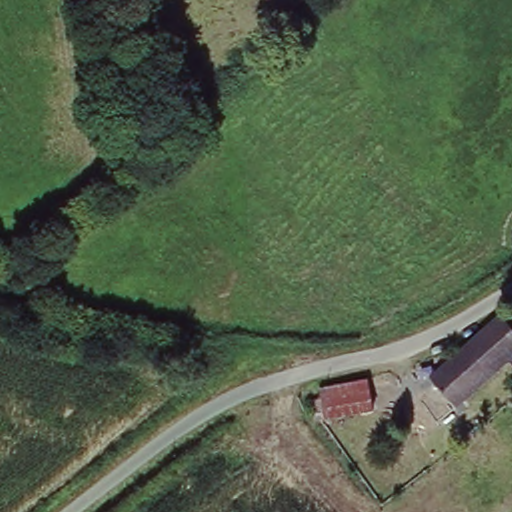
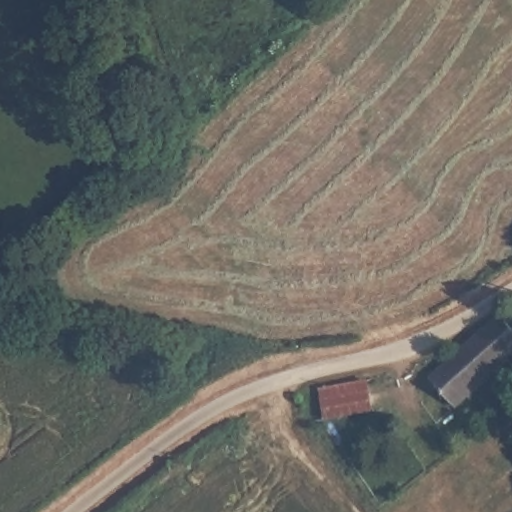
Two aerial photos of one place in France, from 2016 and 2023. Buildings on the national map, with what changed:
unchanged [(512,334),(512,366),(504,359),(459,404),(434,380),(497,319),(512,334)]
unchanged [(371,384),(376,414),(329,419),(325,408),(322,389),(371,384)]

